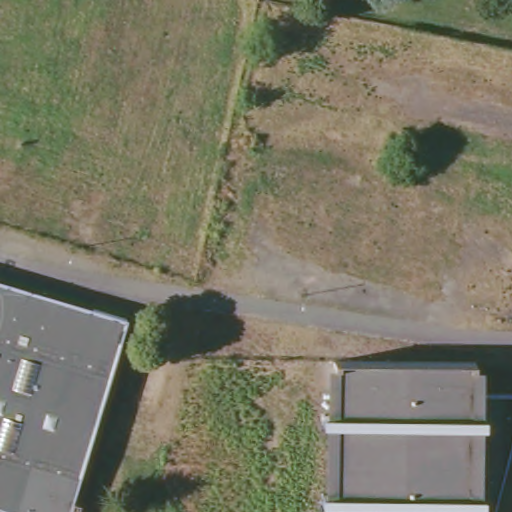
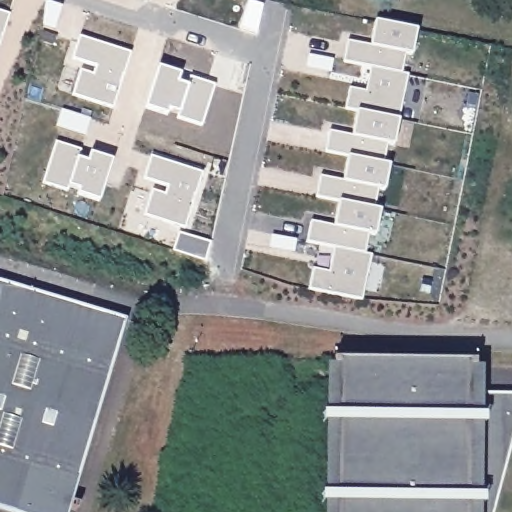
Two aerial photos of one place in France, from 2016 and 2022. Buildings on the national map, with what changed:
new [(0,39),(0,12),(8,15),(0,39)]
new [(343,63),(347,42),(370,47),(375,23),(417,31),(412,56),(406,55),(402,75),(370,69),(343,63)]
new [(130,51),(112,107),(73,94),(82,61),(70,56),(74,34),(130,51)]
new [(330,73),(305,68),(308,56),(332,61),(330,73)]
new [(217,84),(205,125),(147,109),(160,66),(217,84)]
new [(408,76),(399,121),(345,110),(350,90),(366,93),(370,69),(402,75),(408,76)]
new [(325,153),(330,133),(352,137),(357,113),(399,121),(394,146),(388,145),(384,165),(352,159),(325,153)]
new [(80,150),(77,159),(87,163),(90,153),(112,161),(98,199),(79,193),(80,190),(69,187),(67,190),(45,183),(56,141),(80,150)]
new [(202,173),(186,228),(146,215),(153,191),(166,195),(168,186),(144,178),(152,156),(202,173)]
new [(385,192),(378,190),(375,210),(317,198),(320,178),(343,182),(348,158),(390,166),(385,192)]
new [(376,237),(370,235),(366,255),(307,243),(312,223),(335,227),(339,203),(381,211),(376,237)]
new [(372,256),(363,301),(310,291),(313,270),(330,273),(335,249),(365,255),(372,256)]
unchanged [(70,500),(77,503),(75,511),(67,508),(66,512),(17,512),(0,507),(0,281),(125,320),(70,500)]
unchanged [(475,361),(475,368),(469,368),(468,392),(512,394),(512,436),(492,512),(334,512),(337,364),(332,364),(333,357),(475,361)]

